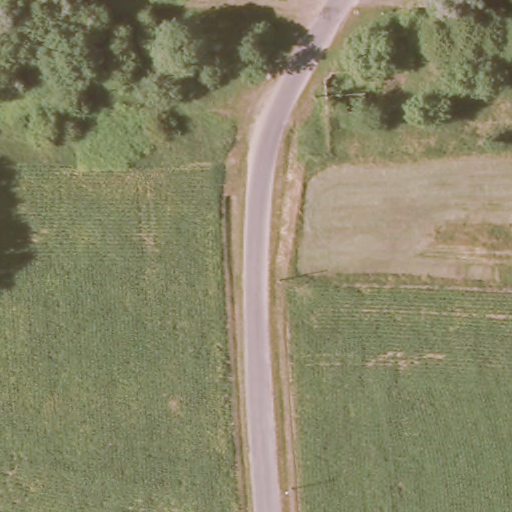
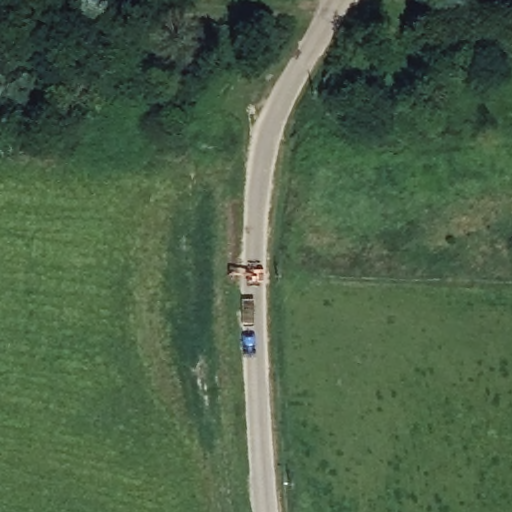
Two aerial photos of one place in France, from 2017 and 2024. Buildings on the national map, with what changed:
unchanged [(186,55),(187,67),(154,70),(154,55),(186,55)]

